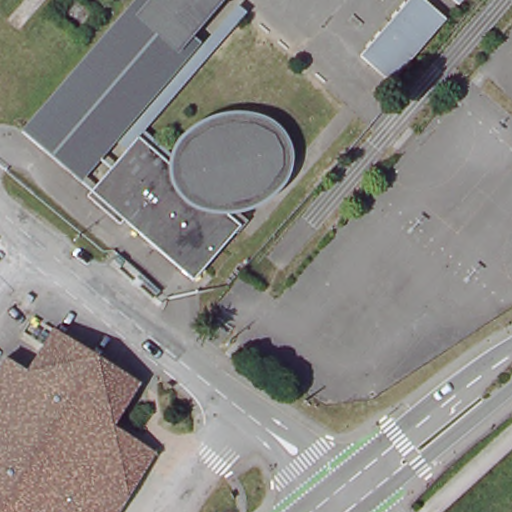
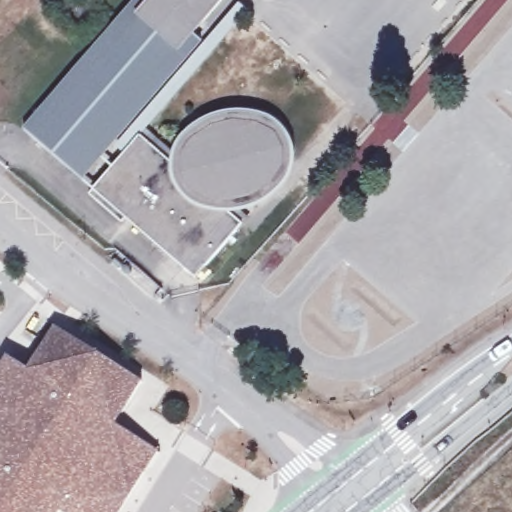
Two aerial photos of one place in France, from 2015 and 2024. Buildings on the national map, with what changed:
unchanged [(194,39),(74,177),(16,128),(129,0),(215,0),(187,33),(194,39)]
demolished [(390,81),(361,56),(409,0),(426,0),(445,17),(390,81)]
demolished [(455,0),(461,0),(458,3),(455,0)]
unchanged [(184,274),(118,218),(113,222),(81,193),(122,146),(115,140),(232,4),(239,10),(237,11),(139,126),(175,157),(178,146),(188,136),(201,127),(213,122),(226,120),(238,120),(249,122),(258,125),(264,129),(272,136),(276,143),(277,154),(276,166),(273,175),(265,184),(257,191),(247,196),(237,200),(225,202),(241,216),(234,223),(197,265),(187,277),(184,274)]
unchanged [(147,475),(123,512),(0,512),(0,371),(9,357),(31,371),(58,329),(145,384),(118,428),(139,441),(160,455),(147,475)]

